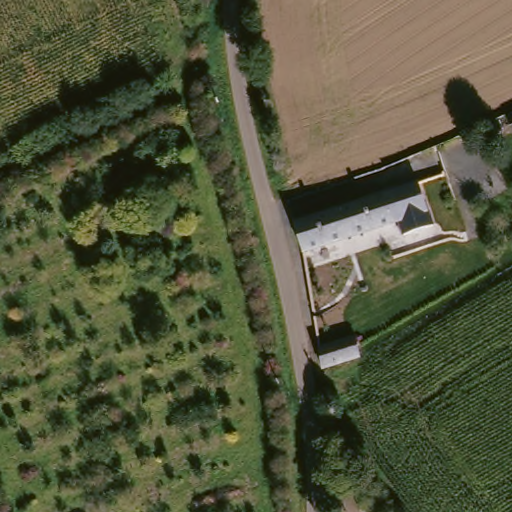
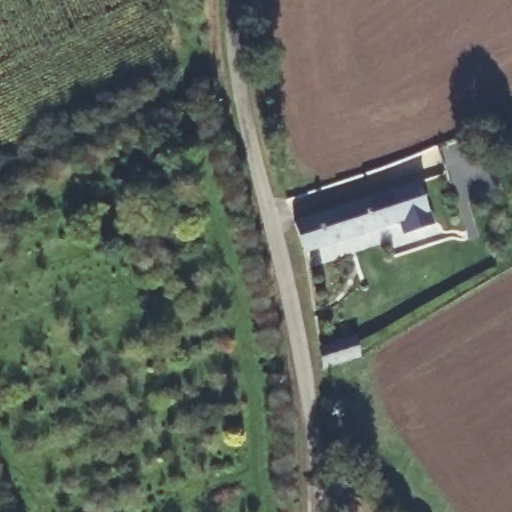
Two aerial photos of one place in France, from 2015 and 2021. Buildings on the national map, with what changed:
unchanged [(400,235),(397,226),(388,196),(420,182),(434,222),(400,235)]
unchanged [(300,256),(295,251),(288,229),(357,206),(388,196),(397,226),(300,256)]
unchanged [(360,355),(358,356),(323,367),(320,350),(355,339),(360,355)]

